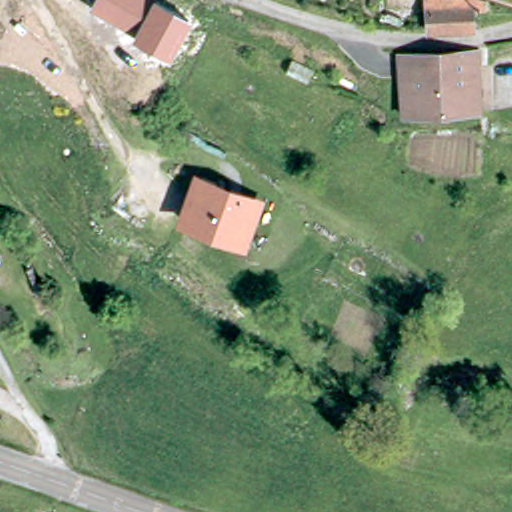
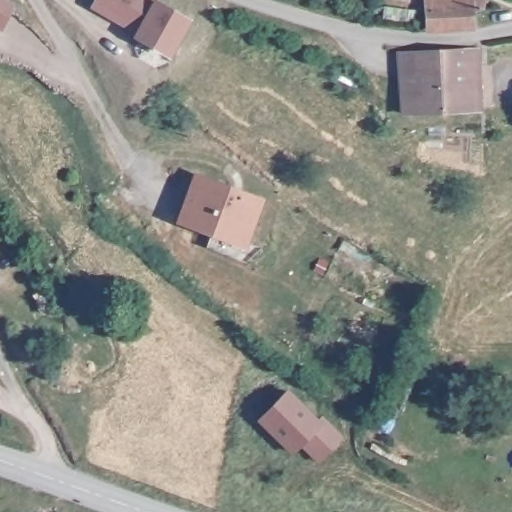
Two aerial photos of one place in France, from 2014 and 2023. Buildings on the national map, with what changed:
new [(0,25),(0,0),(7,0),(20,6),(8,29),(0,25)]
unchanged [(162,0),(194,18),(171,59),(132,40),(137,32),(92,7),(96,0),(162,0)]
unchanged [(423,2),(455,0),(471,0),(472,20),(423,23),(423,2)]
unchanged [(404,109),(400,51),(479,50),(480,106),(404,109)]
unchanged [(195,173),(197,171),(255,193),(240,235),(182,213),(195,173)]
new [(269,410),(290,389),(320,419),(323,415),(343,435),(320,458),(302,441),(294,450),(267,423),(269,410)]

